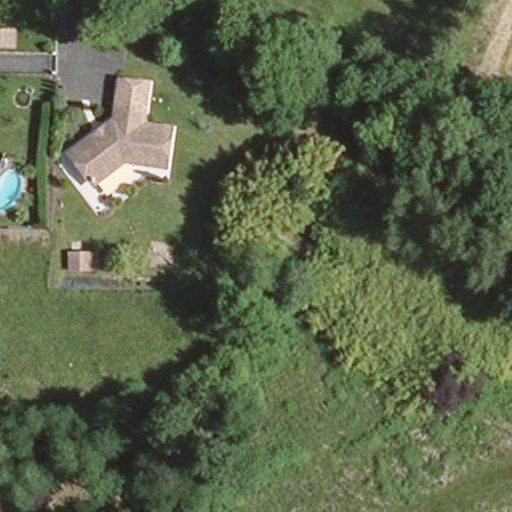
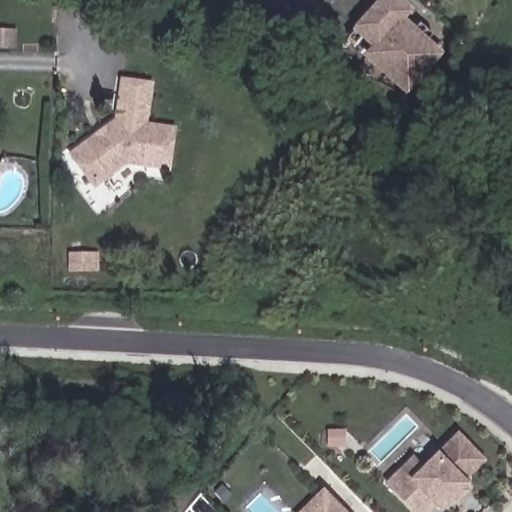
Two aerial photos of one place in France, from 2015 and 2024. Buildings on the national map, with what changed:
new [(280,4),(275,0),(284,0),(280,4)]
new [(413,9),(406,18),(448,54),(409,97),(362,57),(371,47),(351,30),(379,0),(404,0),(413,9)]
unchanged [(0,47),(0,31),(10,31),(10,47),(0,47)]
unchanged [(112,103),(114,75),(147,81),(144,106),(142,122),(171,125),(165,168),(127,161),(88,186),(63,152),(110,119),(112,103)]
unchanged [(72,256),(95,255),(100,255),(101,273),(95,273),(72,273),(72,256)]
new [(470,484),(443,512),(442,512),(436,507),(432,512),(413,512),(384,483),(415,452),(427,463),(438,453),(458,432),(486,460),(466,480),(470,484)]
new [(348,512),(299,512),(323,487),(348,512)]

